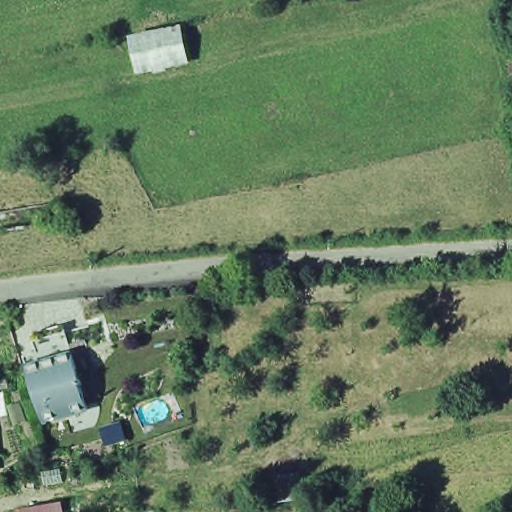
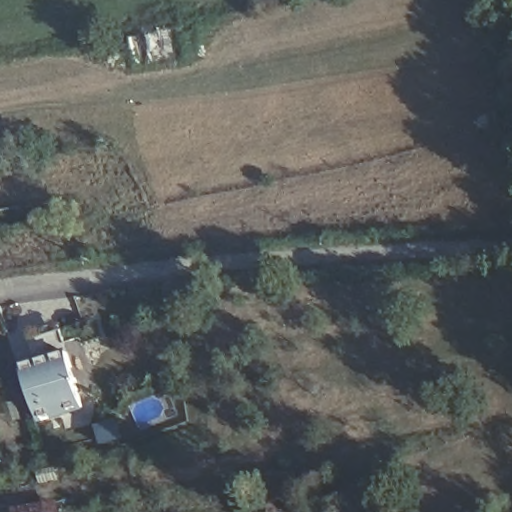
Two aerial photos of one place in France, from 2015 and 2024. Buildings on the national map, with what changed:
unchanged [(184,55),(134,65),(128,32),(177,22),(184,55)]
unchanged [(0,231),(0,210),(57,200),(61,219),(0,231)]
unchanged [(72,379),(79,400),(36,413),(21,362),(21,360),(20,356),(31,351),(27,333),(58,325),(65,347),(68,356),(74,377),(72,379)]
unchanged [(301,500),(268,502),(268,512),(255,512),(252,474),(296,468),(301,500)]
unchanged [(56,497),(58,512),(12,512),(11,507),(56,497)]

